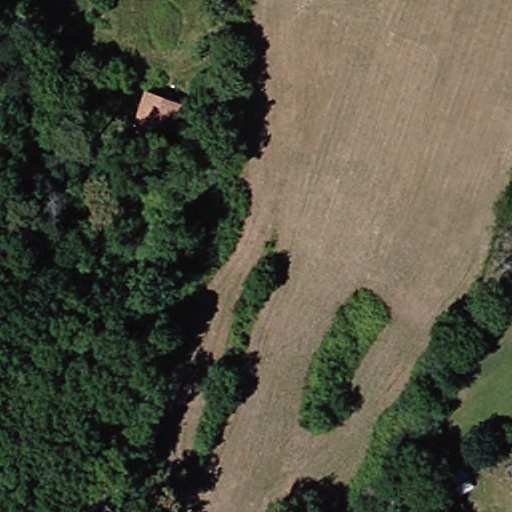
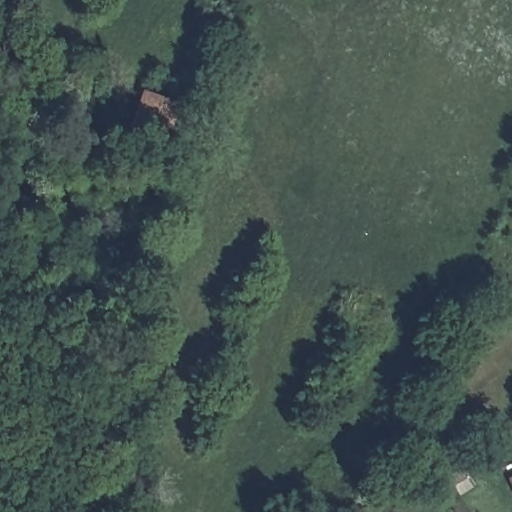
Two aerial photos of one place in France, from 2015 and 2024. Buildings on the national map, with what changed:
unchanged [(145,166),(126,160),(134,137),(151,93),(185,105),(182,114),(178,129),(169,128),(155,169),(145,166)]
unchanged [(504,482),(512,477),(512,495),(504,482)]
unchanged [(415,511),(429,501),(437,512),(416,512),(415,511)]

